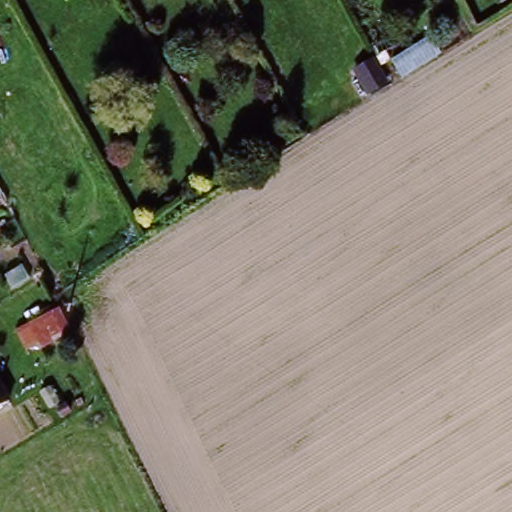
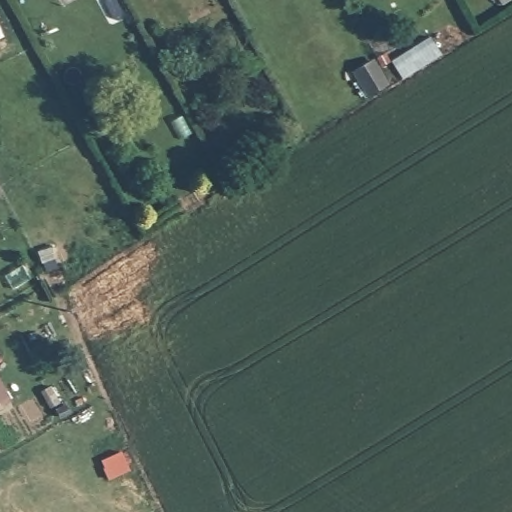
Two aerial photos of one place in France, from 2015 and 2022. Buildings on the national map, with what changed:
unchanged [(497,3),(495,0),(503,0),(497,3)]
unchanged [(467,36),(404,76),(398,66),(432,44),(430,38),(459,21),(467,36)]
unchanged [(256,153),(232,168),(225,157),(249,142),(256,153)]
unchanged [(35,315),(34,310),(56,302),(65,333),(25,351),(17,325),(35,315)]
unchanged [(18,412),(0,421),(0,377),(18,412)]

